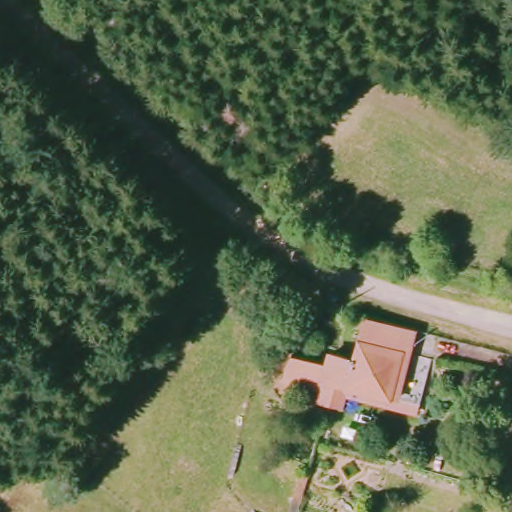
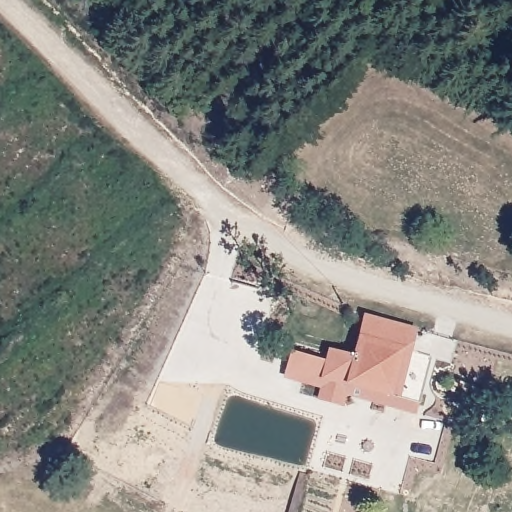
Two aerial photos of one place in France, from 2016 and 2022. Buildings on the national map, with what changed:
unchanged [(431,335),(415,402),(282,371),(286,355),(323,364),(325,354),(348,360),(360,317),(431,335)]
unchanged [(415,402),(412,412),(340,394),(337,405),(313,400),(315,388),(280,379),(282,371),(415,402)]

